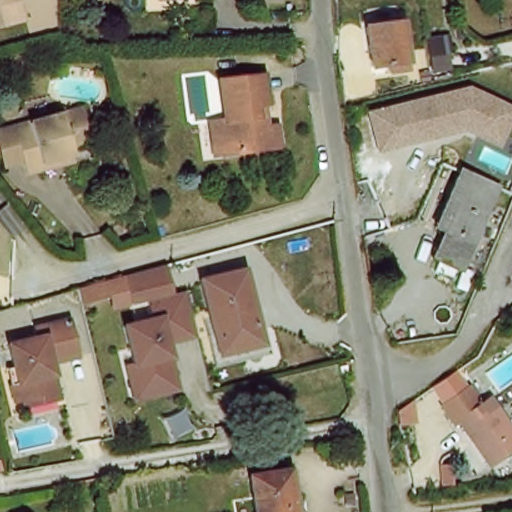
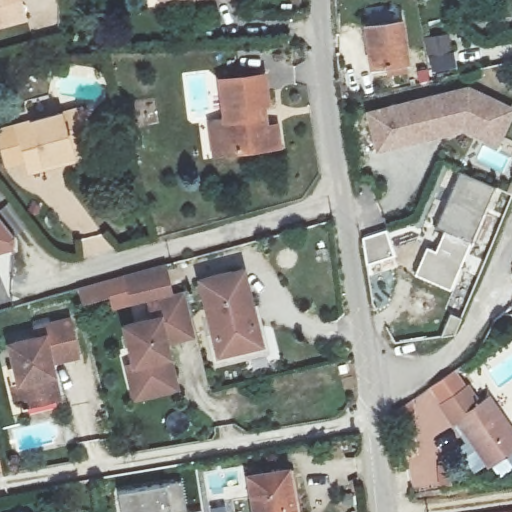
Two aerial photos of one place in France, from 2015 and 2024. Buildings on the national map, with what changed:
unchanged [(1,0),(8,29),(0,30),(0,0),(1,0)]
unchanged [(375,73),(370,33),(409,29),(412,67),(375,73)]
unchanged [(219,118),(226,116),(233,116),(227,78),(268,71),(276,102),(269,104),(272,124),(280,122),(284,144),(231,151),(225,153),(219,118)]
unchanged [(466,132),(377,154),(367,111),(468,86),(512,107),(512,122),(500,149),(466,132)]
unchanged [(27,179),(24,170),(12,131),(83,108),(95,142),(69,151),(71,155),(75,164),(27,179)]
unchanged [(441,258),(452,239),(433,230),(463,173),(500,192),(464,270),(441,258)]
new [(386,252),(392,271),(365,283),(361,256),(386,252)]
unchanged [(227,365),(200,279),(245,266),(273,349),(227,365)]
unchanged [(167,269),(173,297),(187,291),(196,336),(165,345),(168,358),(175,355),(182,389),(135,402),(126,367),(131,366),(122,326),(155,315),(151,299),(130,305),(126,279),(167,269)]
unchanged [(51,364),(60,400),(43,404),(42,398),(16,404),(11,384),(17,382),(9,345),(36,338),(33,329),(68,321),(77,356),(51,364)]
unchanged [(466,422),(457,418),(447,400),(472,384),(483,402),(492,395),(512,425),(512,453),(493,465),(466,422)]
unchanged [(252,475),(290,467),(299,512),(260,512),(252,475)]
new [(117,493),(166,485),(182,481),(187,510),(178,512),(120,512),(117,493)]

